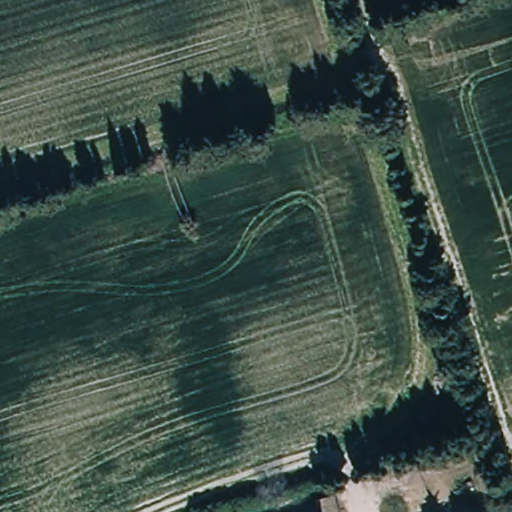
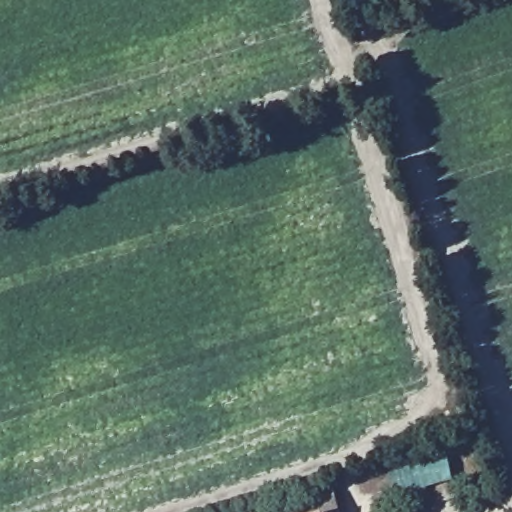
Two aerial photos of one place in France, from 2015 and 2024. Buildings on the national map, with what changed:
unchanged [(330,501),(332,512),(313,512),(311,507),(330,501)]

